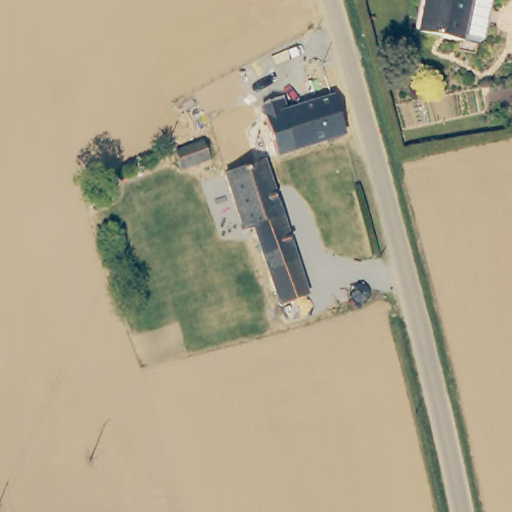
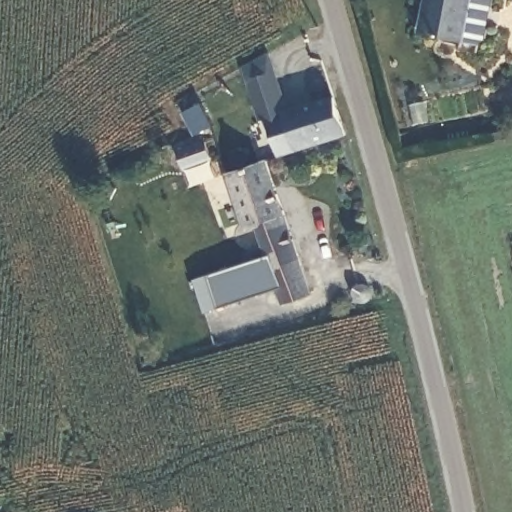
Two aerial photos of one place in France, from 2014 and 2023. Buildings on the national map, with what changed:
unchanged [(493,9),(486,8),(481,21),(486,25),(479,45),(415,30),(422,0),(495,0),(493,9)]
unchanged [(278,155),(266,115),(255,117),(241,66),(268,54),(288,113),(283,115),(296,150),(278,155)]
unchanged [(343,135),(296,150),(283,115),(328,99),(343,135)]
unchanged [(219,162),(189,171),(182,153),(213,145),(219,162)]
unchanged [(314,289),(308,291),(311,306),(286,315),(259,225),(249,226),(229,169),(268,156),(314,289)]
new [(204,314),(192,280),(269,257),(278,288),(204,314)]

